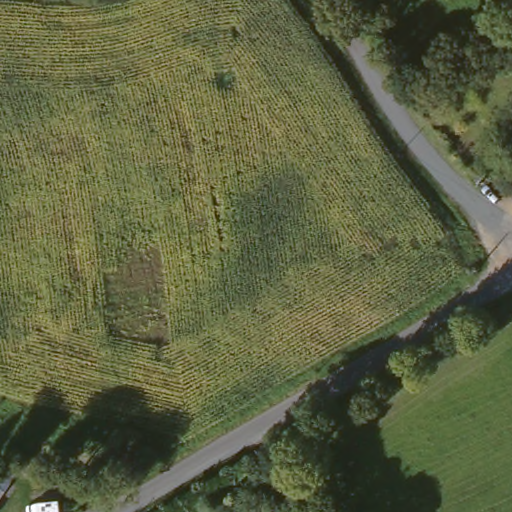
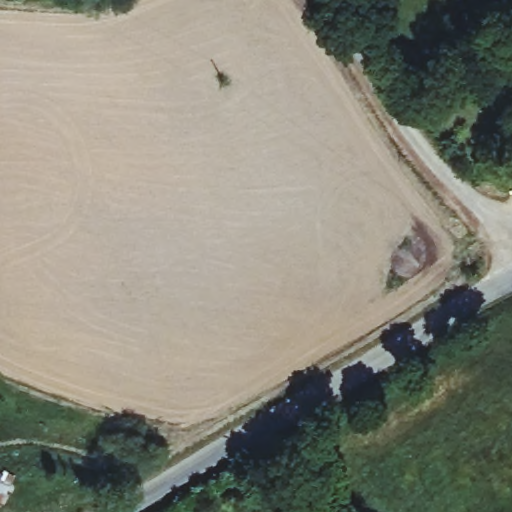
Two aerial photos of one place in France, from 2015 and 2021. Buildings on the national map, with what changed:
unchanged [(0,501),(0,474),(13,482),(0,501)]

